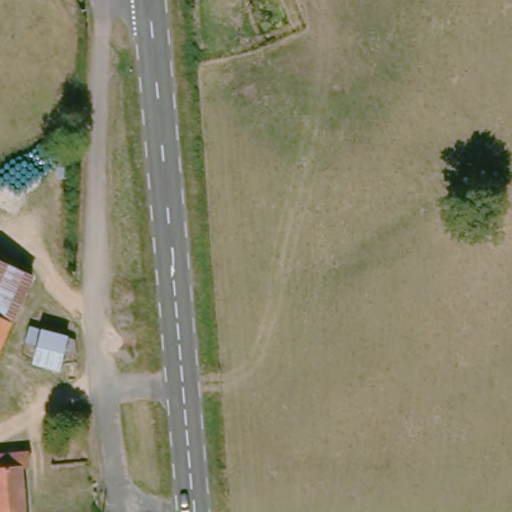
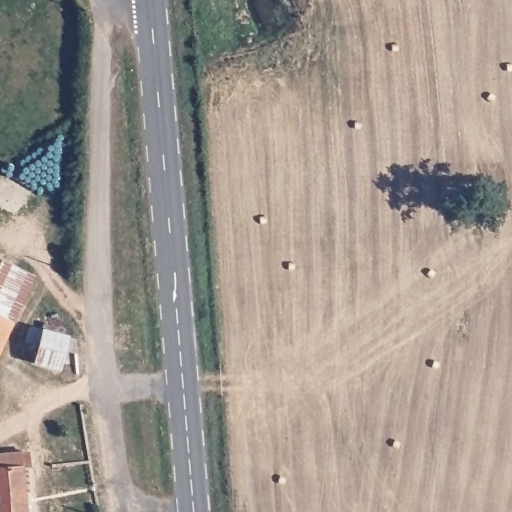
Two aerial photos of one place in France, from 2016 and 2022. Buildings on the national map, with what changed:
unchanged [(9,345),(0,365),(0,265),(37,281),(9,345)]
unchanged [(40,355),(32,352),(36,341),(45,343),(48,335),(71,342),(63,373),(37,366),(40,355)]
unchanged [(33,472),(25,472),(28,512),(0,512),(0,456),(32,453),(33,472)]

